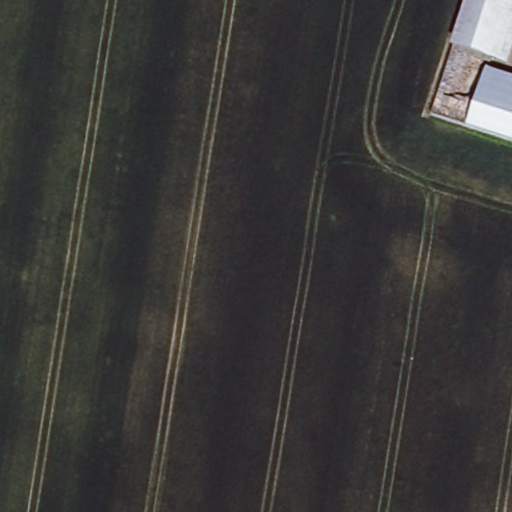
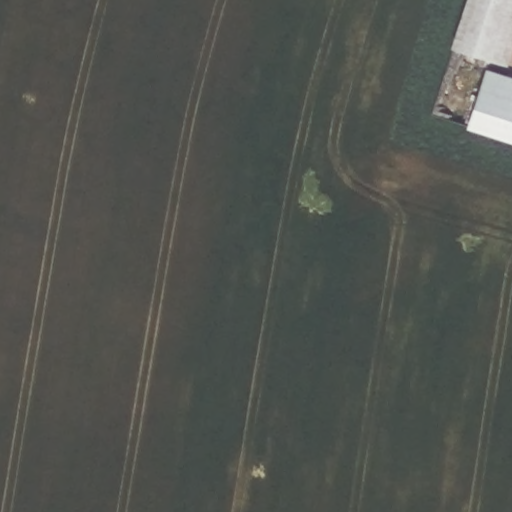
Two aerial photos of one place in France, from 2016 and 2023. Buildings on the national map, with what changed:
unchanged [(455,40),(469,0),(512,0),(512,60),(455,40)]
unchanged [(512,76),(512,140),(472,126),(492,68),(512,76)]

